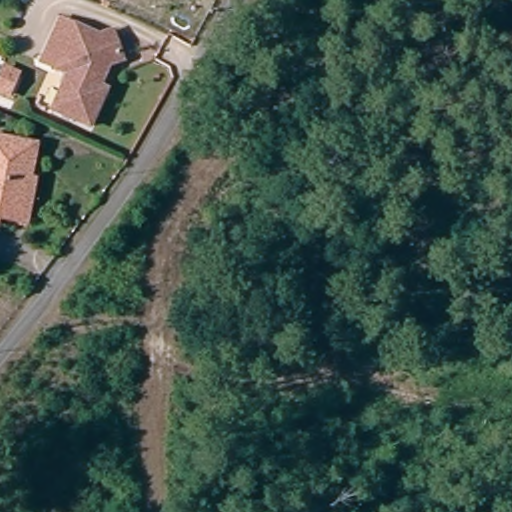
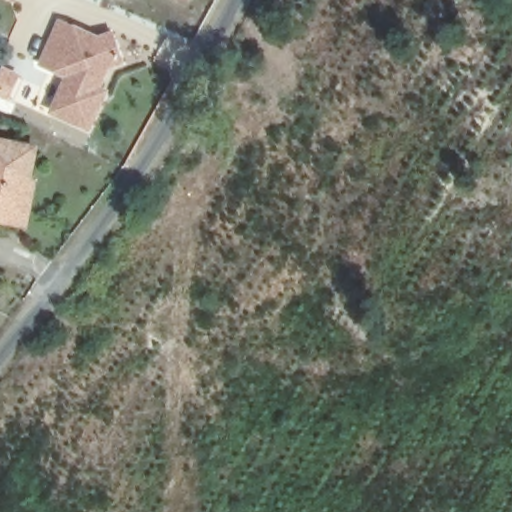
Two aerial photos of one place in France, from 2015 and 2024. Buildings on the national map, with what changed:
unchanged [(100,90),(84,126),(48,110),(64,75),(37,63),(56,22),(94,39),(107,35),(116,61),(104,65),(93,87),(100,90)]
unchanged [(21,177),(29,179),(19,222),(11,220),(0,218),(0,138),(28,144),(21,177)]

